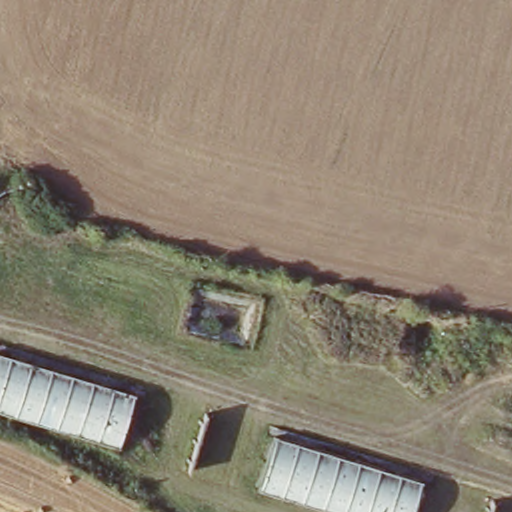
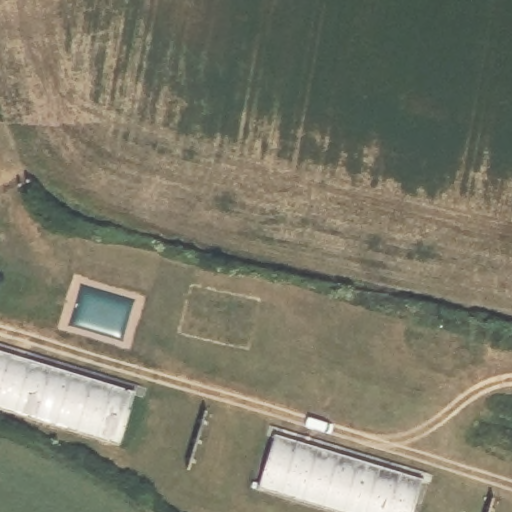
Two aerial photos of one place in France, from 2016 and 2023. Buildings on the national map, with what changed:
unchanged [(138,387),(121,446),(0,408),(0,347),(138,387)]
unchanged [(429,474),(420,512),(342,512),(259,487),(276,430),(429,474)]

